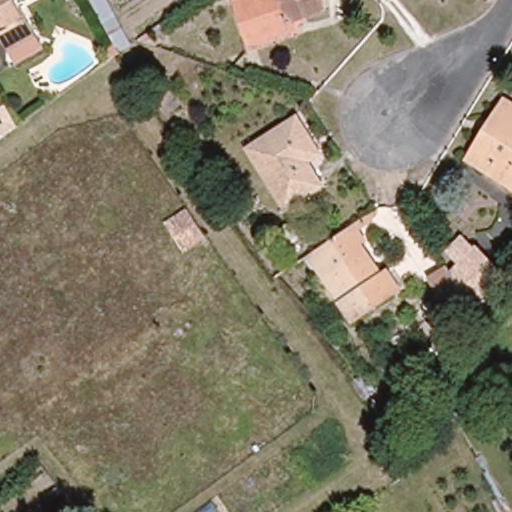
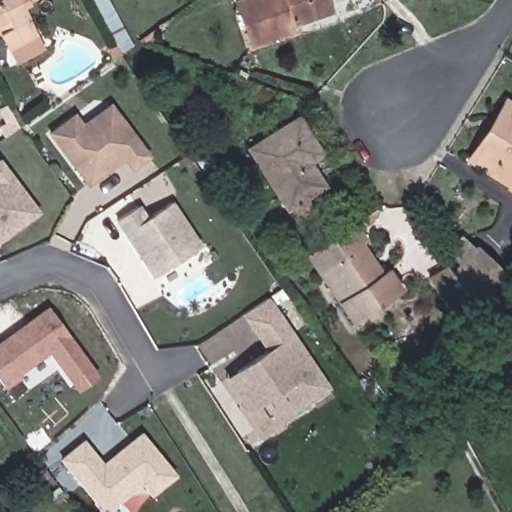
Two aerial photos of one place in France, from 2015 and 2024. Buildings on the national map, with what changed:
unchanged [(14,5),(30,35),(4,50),(0,42),(0,0),(22,0),(14,5)]
unchanged [(265,30),(244,37),(231,0),(319,0),(320,4),(287,16),(289,22),(265,30)]
new [(35,35),(43,49),(16,63),(9,50),(35,35)]
unchanged [(511,190),(470,164),(463,159),(500,100),(508,105),(512,108),(512,188),(511,190)]
new [(94,101),(109,102),(119,116),(149,156),(131,169),(124,157),(88,184),(50,134),(74,116),(94,101)]
new [(8,121),(0,108),(0,106),(5,102),(18,126),(4,136),(0,127),(8,121)]
unchanged [(293,210),(287,200),(280,203),(243,144),(292,112),(304,132),(314,149),(303,156),(318,180),(300,191),(307,202),(293,210)]
new [(38,212),(0,241),(0,162),(1,161),(38,212)]
new [(139,207),(147,220),(172,204),(200,248),(154,277),(118,221),(139,207)]
unchanged [(303,255),(345,227),(361,216),(364,222),(353,230),(359,239),(354,242),(377,276),(383,272),(394,289),(347,321),(335,302),(314,271),(303,255)]
unchanged [(459,322),(426,283),(464,240),(502,273),(459,322)]
new [(255,331),(244,315),(268,298),(279,315),(293,335),(328,388),(295,410),(282,390),(249,412),(230,383),(227,379),(238,372),(269,351),(255,331)]
new [(48,308),(96,374),(78,387),(49,349),(17,373),(19,376),(4,386),(0,380),(0,343),(29,322),(48,308)]
unchanged [(391,450),(382,436),(405,420),(414,434),(391,450)]
new [(94,502),(61,462),(83,445),(100,468),(139,437),(172,477),(149,496),(129,512),(97,512),(93,507),(94,502)]

